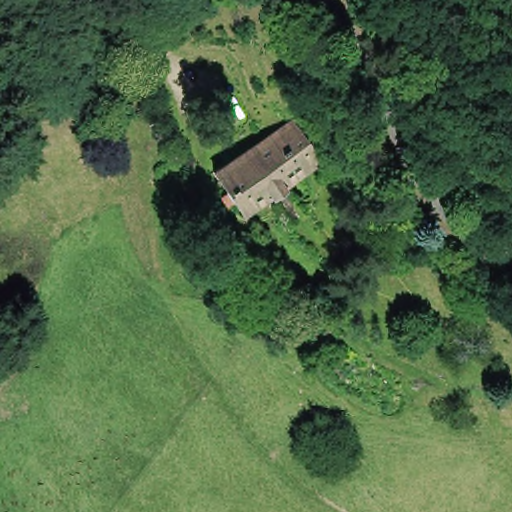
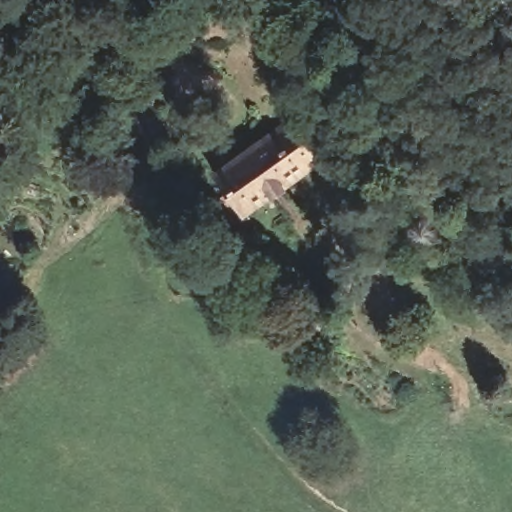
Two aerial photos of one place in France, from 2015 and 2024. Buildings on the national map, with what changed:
unchanged [(247,215),(238,203),(230,206),(223,195),(228,191),(216,172),(295,118),(324,162),(247,215)]
unchanged [(287,274),(270,285),(247,249),(263,237),(287,274)]

